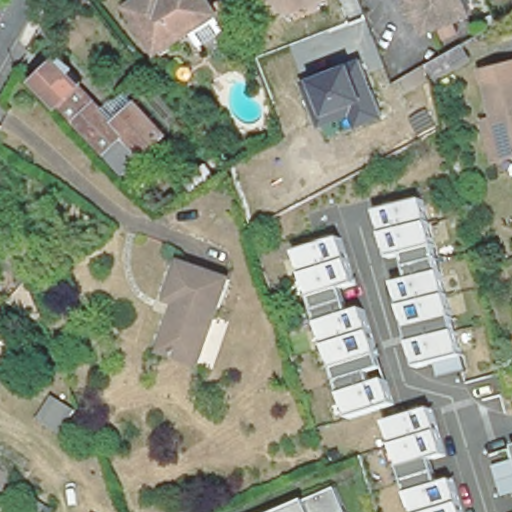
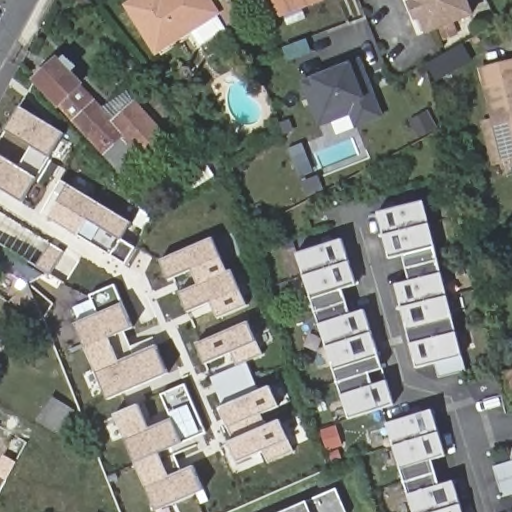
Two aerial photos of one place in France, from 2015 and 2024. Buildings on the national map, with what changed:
unchanged [(183,28),(150,50),(121,4),(127,0),(200,0),(205,7),(217,0),(223,0),(232,20),(218,30),(194,45),(183,28)]
unchanged [(286,10),(284,5),(282,0),(312,0),(286,10)]
unchanged [(409,0),(466,0),(469,9),(426,25),(420,9),(413,11),(409,0)]
unchanged [(476,112),(487,110),(477,59),(512,52),(512,149),(496,152),(485,155),(476,112)]
unchanged [(171,139),(128,179),(79,126),(61,108),(60,109),(60,110),(38,86),(63,62),(85,85),(82,89),(100,107),(106,115),(131,97),(138,108),(140,106),(171,139)]
unchanged [(282,64),(290,82),(269,92),(261,71),(282,64)]
unchanged [(307,91),(350,69),(363,91),(318,115),(307,91)]
new [(5,130),(19,106),(63,133),(22,201),(0,188),(0,156),(20,168),(33,147),(5,130)]
unchanged [(178,179),(205,162),(215,177),(188,194),(178,179)]
new [(126,265),(91,242),(48,215),(67,184),(131,222),(121,240),(136,249),(126,265)]
unchanged [(469,370),(443,377),(440,361),(418,367),(396,283),(410,280),(404,255),(390,258),(378,212),(427,201),(464,353),(469,370)]
demolished [(29,209),(50,221),(33,251),(11,239),(29,209)]
unchanged [(389,378),(398,403),(352,418),(299,251),(344,237),(359,283),(344,288),(353,313),(366,309),(380,351),(384,368),(369,373),(376,382),(389,378)]
new [(170,279),(161,260),(212,238),(226,271),(232,270),(246,305),(218,317),(212,301),(188,311),(180,291),(198,284),(192,270),(170,279)]
demolished [(184,303),(174,300),(186,262),(235,279),(205,363),(168,350),(184,303)]
new [(91,296),(115,286),(133,327),(110,337),(120,360),(155,345),(167,373),(108,398),(75,322),(97,312),(91,296)]
demolished [(34,323),(11,310),(23,287),(48,302),(37,318),(34,323)]
new [(248,321),(257,341),(263,355),(247,362),(259,390),(270,385),(279,406),(261,414),(266,425),(280,419),(289,440),(294,451),(268,462),(263,450),(238,461),(228,440),(233,438),(228,427),(219,406),(223,405),(211,377),(237,366),(231,352),(206,363),(197,343),(248,321)]
new [(173,417),(164,395),(183,387),(203,434),(160,452),(168,470),(190,461),(203,490),(156,510),(115,415),(138,405),(148,428),(173,417)]
unchanged [(50,395),(74,408),(61,433),(36,420),(50,395)]
unchanged [(432,408),(447,455),(435,458),(443,483),(455,480),(464,512),(416,512),(388,421),(432,408)]
unchanged [(503,497),(495,467),(512,462),(512,494),(503,497)]
unchanged [(339,512),(287,512),(331,493),(339,512)]

